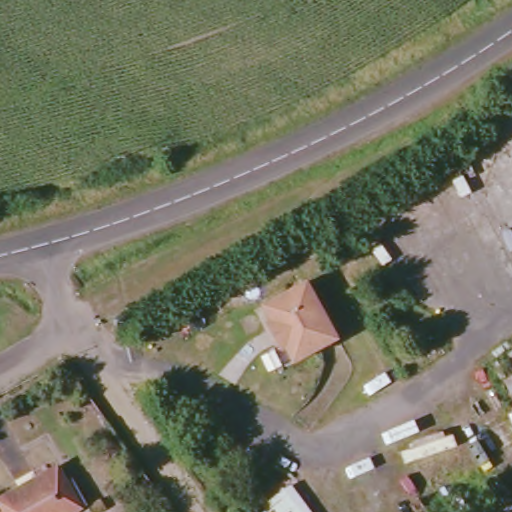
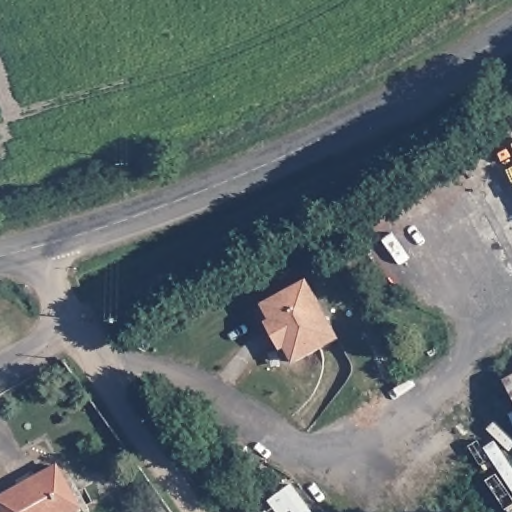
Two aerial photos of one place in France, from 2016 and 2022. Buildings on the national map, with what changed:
unchanged [(301,284),(332,341),(289,366),(282,352),(277,356),(260,329),(267,324),(259,308),(301,284)]
unchanged [(512,375),(512,401),(501,381),(512,375)]
unchanged [(79,507),(69,512),(0,512),(0,499),(57,466),(79,507)]

